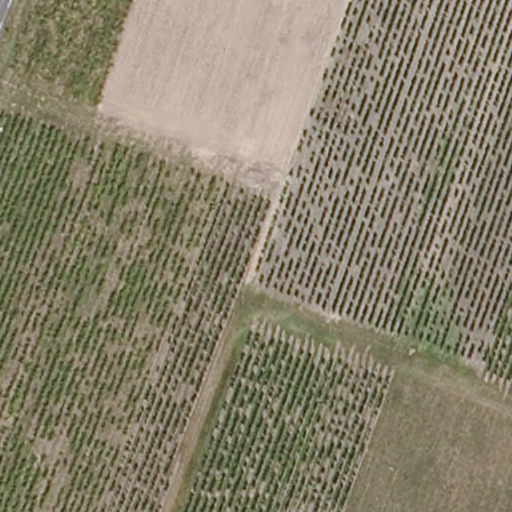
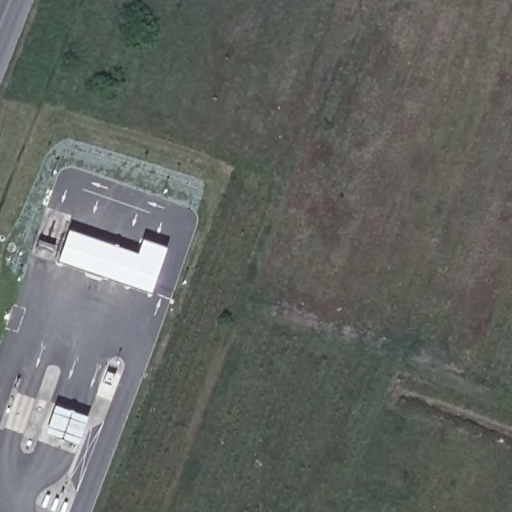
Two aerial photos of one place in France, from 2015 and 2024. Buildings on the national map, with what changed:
new [(57,264),(68,231),(137,254),(141,240),(166,248),(150,295),(57,264)]
new [(58,405),(91,417),(81,445),(48,433),(58,405)]

